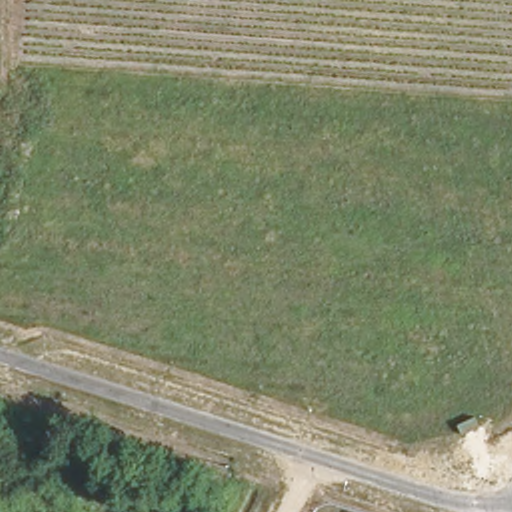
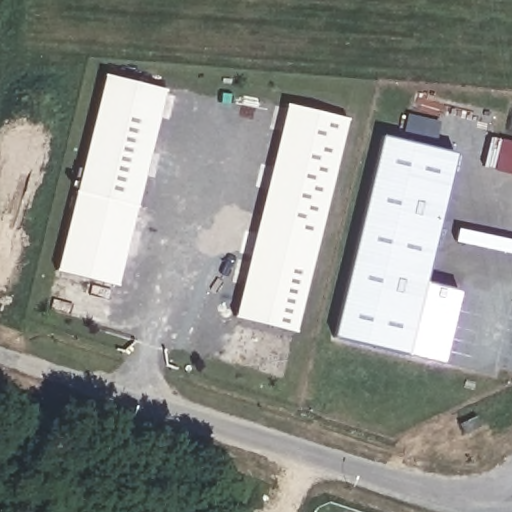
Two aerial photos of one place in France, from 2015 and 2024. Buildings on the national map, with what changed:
new [(104,75),(166,89),(137,207),(75,192),(104,75)]
new [(287,104),(348,118),(319,235),(258,221),(287,104)]
new [(383,134),(456,152),(425,281),(460,289),(442,363),(334,337),(383,134)]
new [(70,211),(132,226),(117,285),(56,270),(70,211)]
new [(310,273),(249,257),(258,221),(319,235),(310,273)]
new [(249,257),(310,273),(296,331),(235,316),(249,257)]

